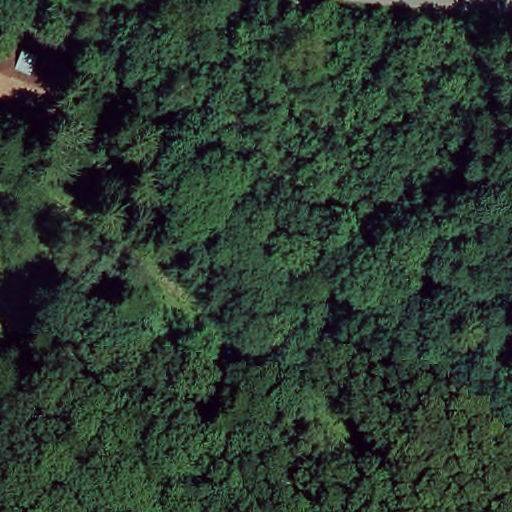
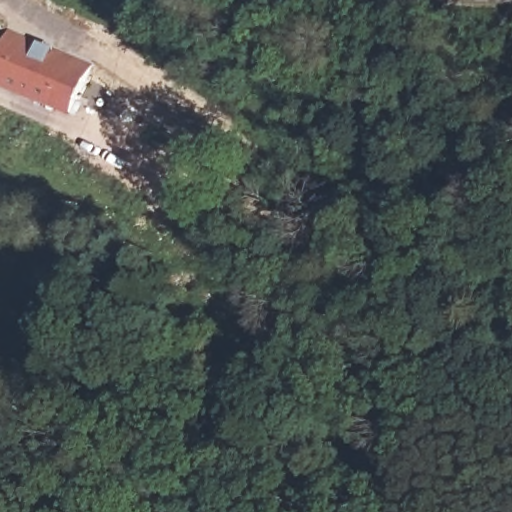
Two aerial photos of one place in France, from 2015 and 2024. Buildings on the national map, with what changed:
new [(55,108),(0,84),(0,28),(75,61),(55,108)]
demolished [(65,59),(51,101),(0,82),(0,33),(65,59)]

